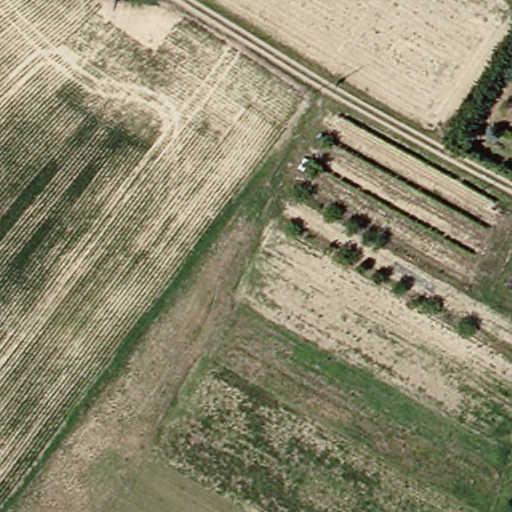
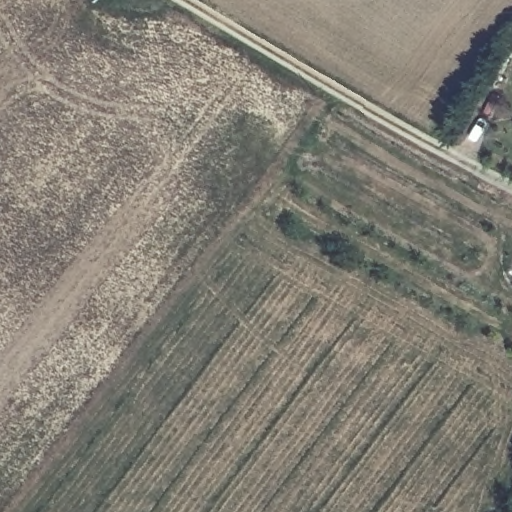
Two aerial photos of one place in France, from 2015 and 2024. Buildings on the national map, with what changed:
unchanged [(509,257),(512,252),(512,259),(509,257)]

